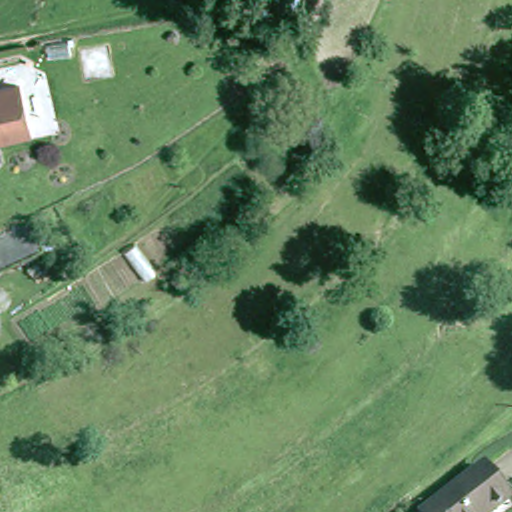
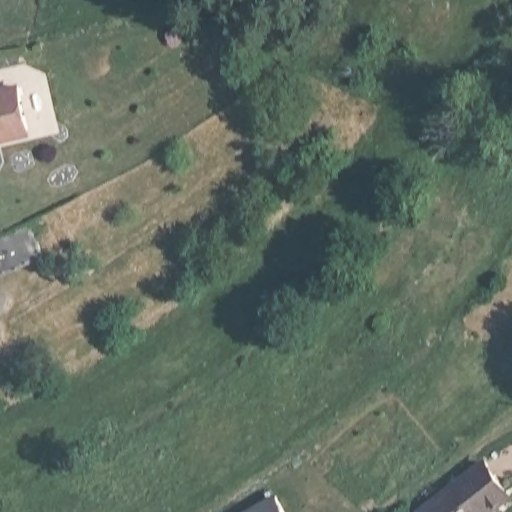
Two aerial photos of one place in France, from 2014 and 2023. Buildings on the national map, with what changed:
unchanged [(32,134),(0,140),(0,93),(23,89),(32,134)]
unchanged [(47,221),(58,252),(0,271),(0,235),(12,231),(47,221)]
unchanged [(429,512),(424,506),(483,456),(505,484),(511,492),(488,512),(429,512)]
new [(288,512),(243,512),(276,492),(288,512)]

